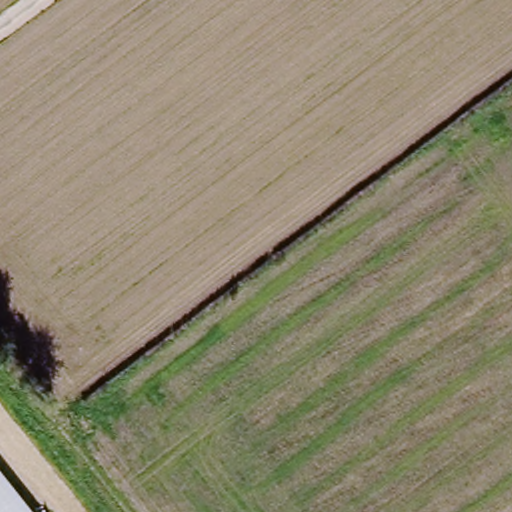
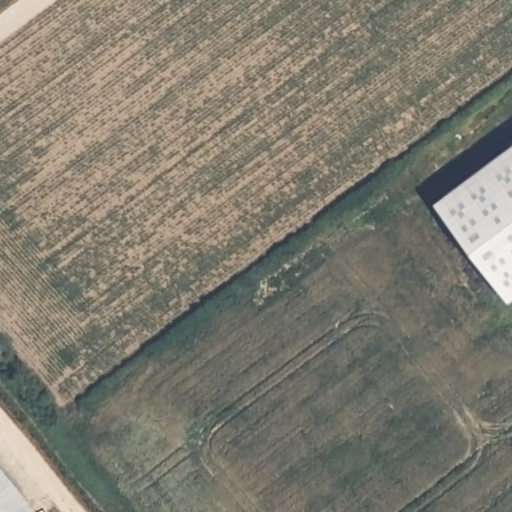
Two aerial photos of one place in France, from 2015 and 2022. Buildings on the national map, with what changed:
new [(510,303),(437,204),(512,148),(512,301),(510,303)]
unchanged [(0,512),(0,470),(33,512),(0,512)]

